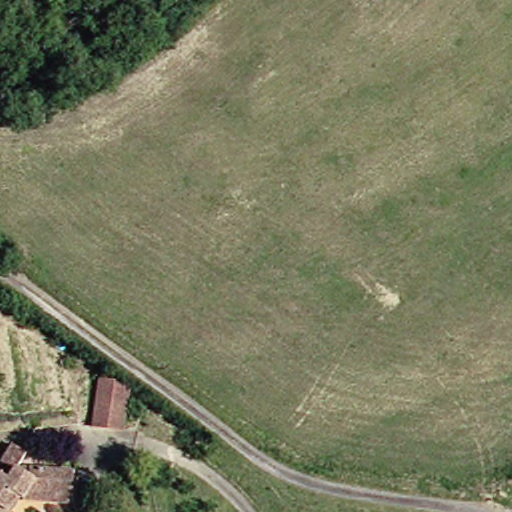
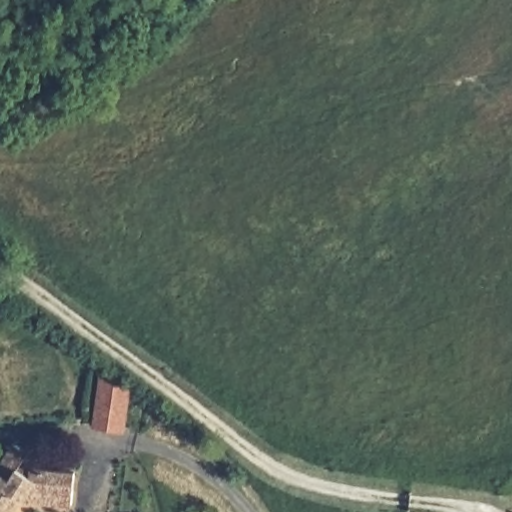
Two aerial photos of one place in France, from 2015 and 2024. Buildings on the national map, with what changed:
unchanged [(102,425),(109,377),(138,380),(132,429),(102,425)]
unchanged [(0,512),(0,478),(24,441),(40,452),(34,465),(85,469),(80,505),(61,501),(33,499),(24,512),(0,512)]

